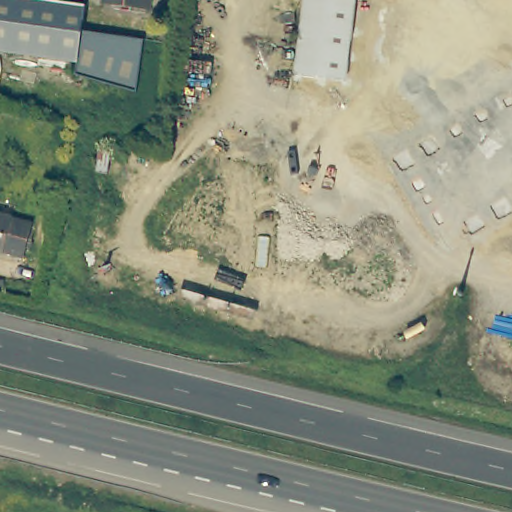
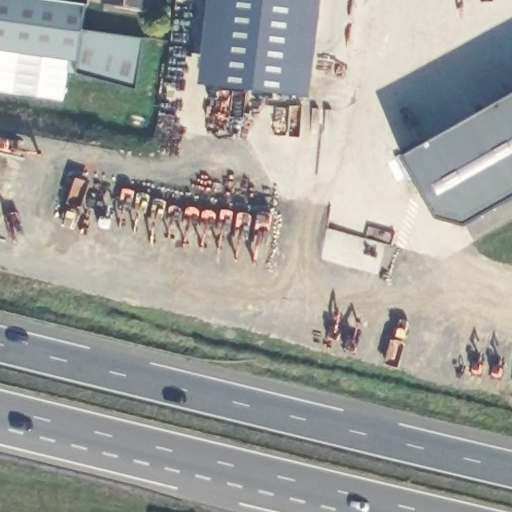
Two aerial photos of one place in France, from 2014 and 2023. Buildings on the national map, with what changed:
unchanged [(144,27),(141,49),(137,80),(75,60),(76,47),(0,38),(0,0),(85,0),(82,21),(144,27)]
unchanged [(103,2),(104,0),(151,0),(149,7),(103,2)]
new [(201,85),(211,0),(324,0),(312,98),(201,85)]
demolished [(295,72),(305,0),(356,0),(346,79),(295,72)]
new [(436,219),(402,159),(512,97),(512,200),(465,227),(436,219)]
demolished [(0,253),(0,215),(36,225),(29,261),(0,253)]

